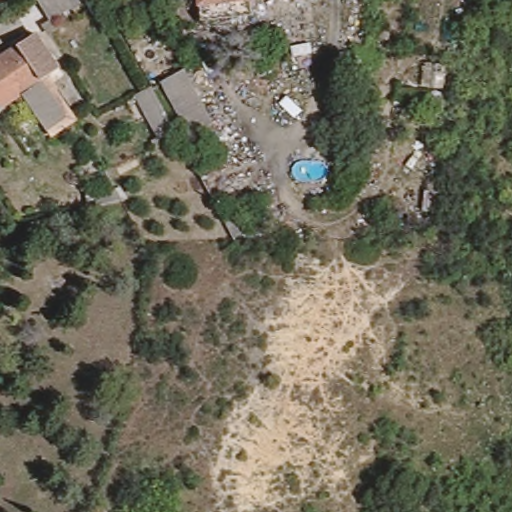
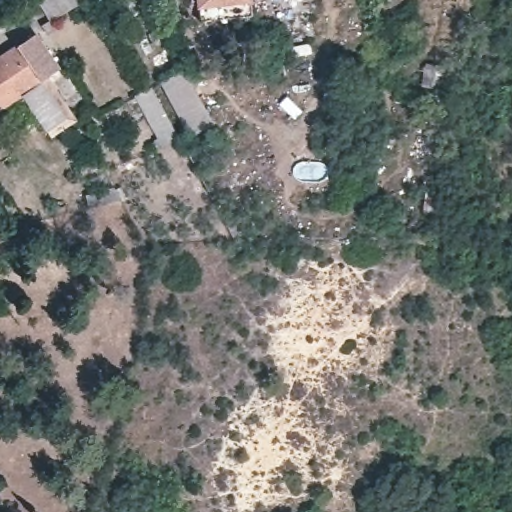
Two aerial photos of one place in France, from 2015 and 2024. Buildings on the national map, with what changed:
unchanged [(61,27),(50,34),(44,23),(52,19),(40,0),(86,0),(56,18),(61,27)]
unchanged [(198,0),(243,0),(199,3),(198,0)]
unchanged [(64,66),(54,73),(45,80),(20,43),(39,30),(64,66)]
unchanged [(69,115),(70,116),(50,130),(25,94),(9,105),(0,93),(0,52),(2,55),(20,43),(45,80),(70,115),(69,115)]
unchanged [(164,83),(189,70),(218,124),(194,138),(164,84),(164,83)]
unchanged [(168,149),(140,96),(154,88),(161,100),(183,141),(168,149)]
unchanged [(84,191),(115,184),(118,198),(88,205),(84,191)]

